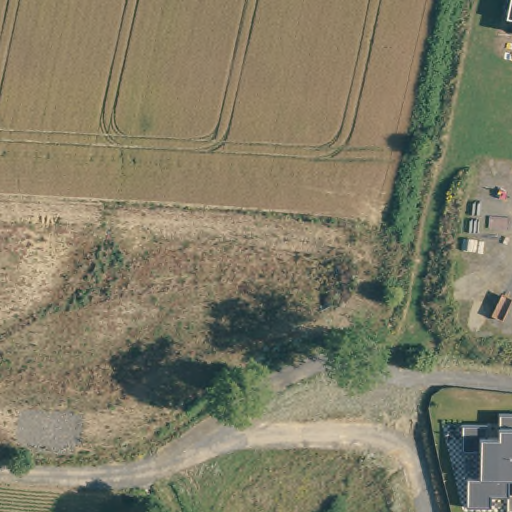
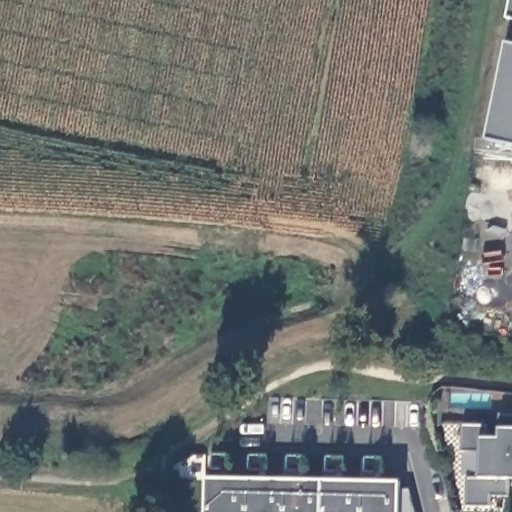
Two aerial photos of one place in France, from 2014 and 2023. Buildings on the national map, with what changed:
unchanged [(506,15),(509,0),(512,0),(512,16),(506,15)]
new [(486,139),(506,43),(512,43),(512,145),(486,139)]
unchanged [(486,426),(486,439),(499,439),(500,429),(501,415),(512,415),(512,478),(509,478),(509,497),(491,496),(491,507),(467,507),(468,479),(481,479),(481,452),(463,452),(463,425),(486,426)]
new [(206,478),(213,478),(223,478),(221,469),(213,469),(214,454),(230,456),(231,478),(260,479),(260,470),(251,470),(251,455),(268,456),(268,478),(299,479),(297,471),(289,471),(290,456),(306,456),(307,479),(338,479),(336,472),(328,472),(329,457),(344,458),(346,480),(376,481),(375,473),(366,472),(366,458),(383,458),(386,481),(401,482),(400,489),(409,489),(415,512),(206,512),(206,478)]

